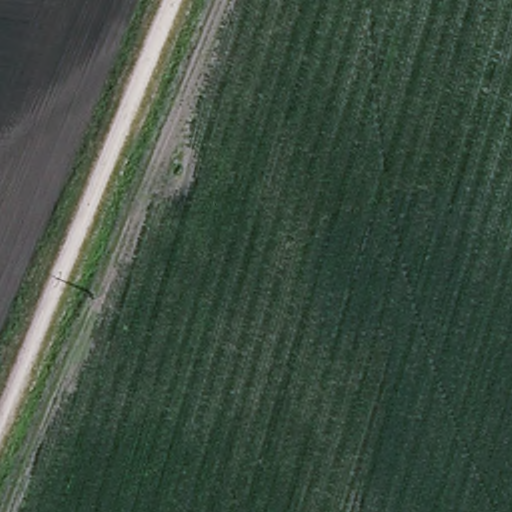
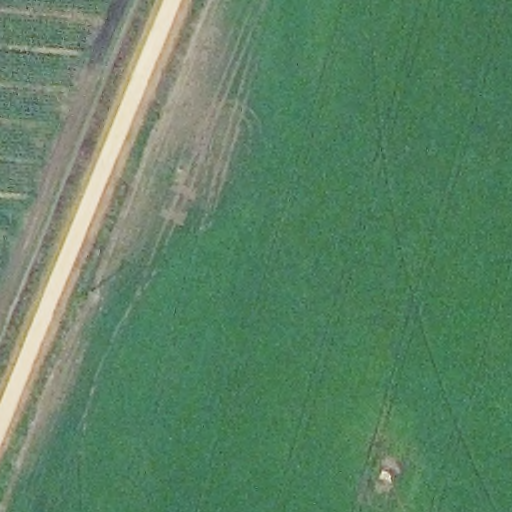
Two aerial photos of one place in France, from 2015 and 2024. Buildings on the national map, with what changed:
[]

